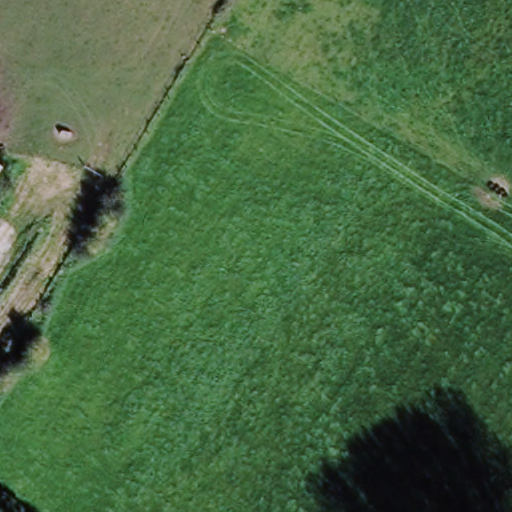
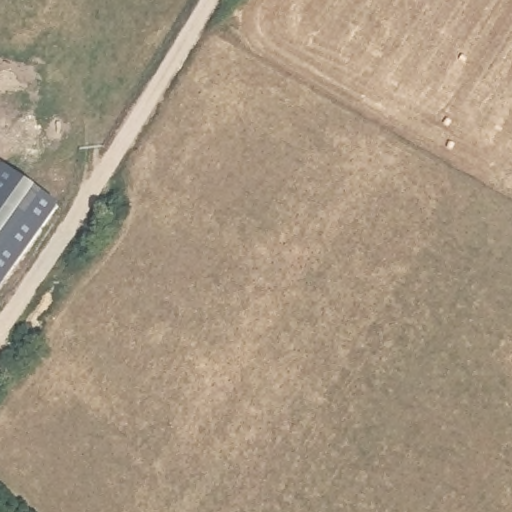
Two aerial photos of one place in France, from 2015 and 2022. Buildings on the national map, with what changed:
unchanged [(0,165),(2,166),(0,169),(0,165)]
new [(55,202),(0,280),(0,169),(2,166),(55,202)]

